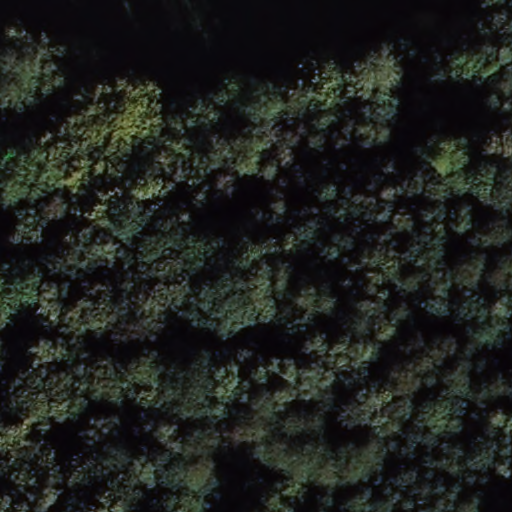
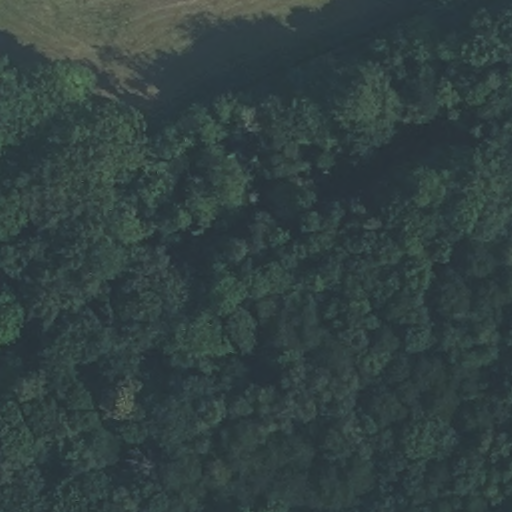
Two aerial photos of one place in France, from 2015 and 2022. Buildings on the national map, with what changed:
[]

